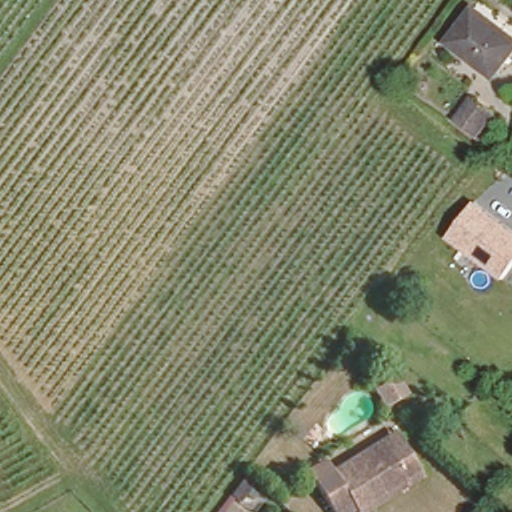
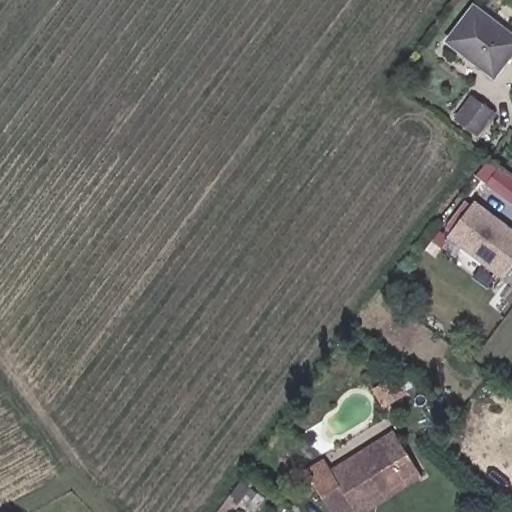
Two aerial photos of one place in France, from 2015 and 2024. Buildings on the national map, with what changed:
unchanged [(512,39),(512,55),(496,76),(449,41),(472,9),(512,39)]
unchanged [(473,132),(452,116),(470,93),(491,108),(473,132)]
unchanged [(447,237),(475,201),(512,230),(512,266),(502,278),(447,237)]
unchanged [(400,393),(380,408),(367,391),(386,376),(400,393)]
unchanged [(348,505),(335,512),(321,512),(296,469),(318,456),(323,463),(326,469),(377,439),(373,433),(388,425),(402,448),(412,465),(416,471),(351,509),(348,505)]

